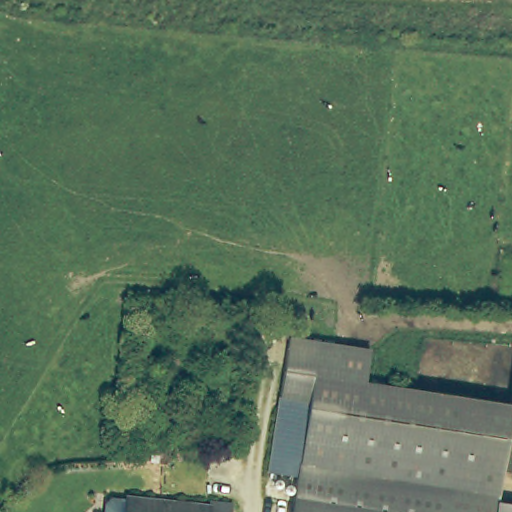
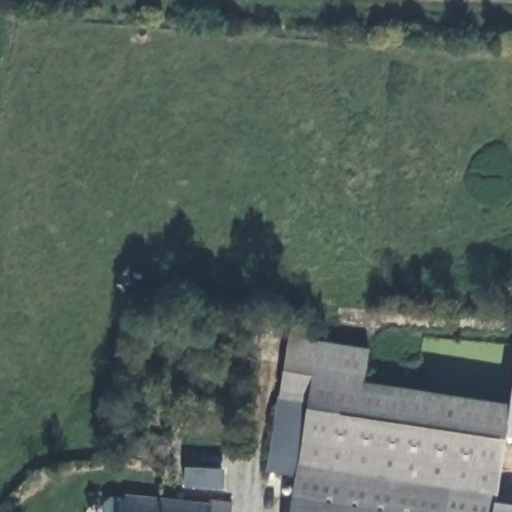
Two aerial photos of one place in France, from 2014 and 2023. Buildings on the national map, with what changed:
unchanged [(358,404),(305,396),(277,391),(286,333),(367,345),(361,379),(358,404)]
unchanged [(305,396),(358,404),(361,379),(410,387),(506,403),(512,375),(512,432),(502,430),(490,498),(512,502),(512,512),(287,512),(305,396)]
unchanged [(233,512),(125,512),(126,500),(210,510),(211,504),(234,507),(233,512)]

